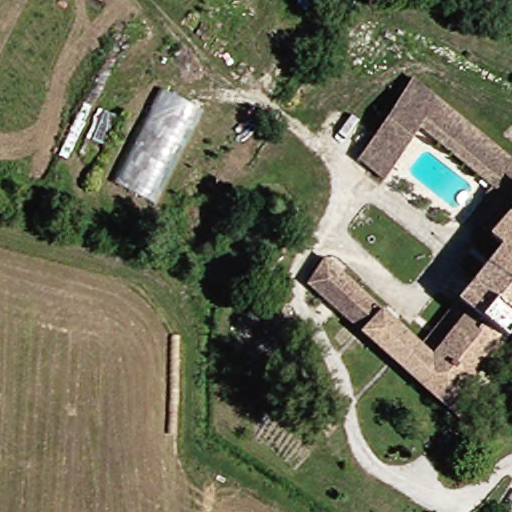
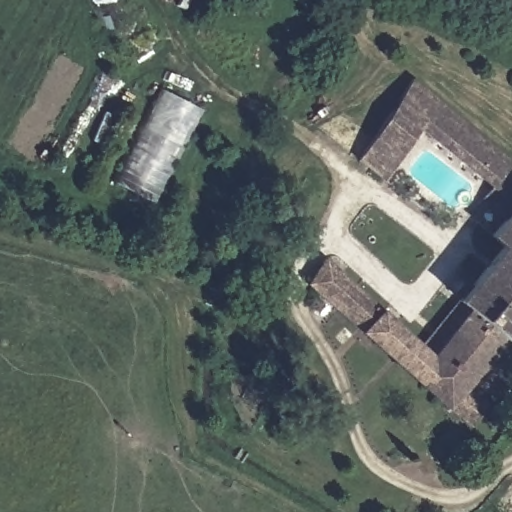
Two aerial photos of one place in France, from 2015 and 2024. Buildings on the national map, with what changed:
unchanged [(421,126),(382,178),(355,157),(412,72),(512,152),(512,163),(495,184),(421,126)]
unchanged [(205,107),(157,200),(109,178),(157,83),(205,107)]
unchanged [(512,323),(447,401),(303,280),(328,253),(423,334),(503,234),(490,225),(512,197),(512,323)]

